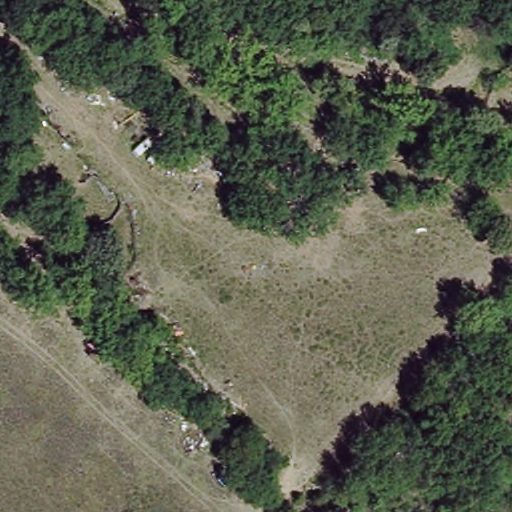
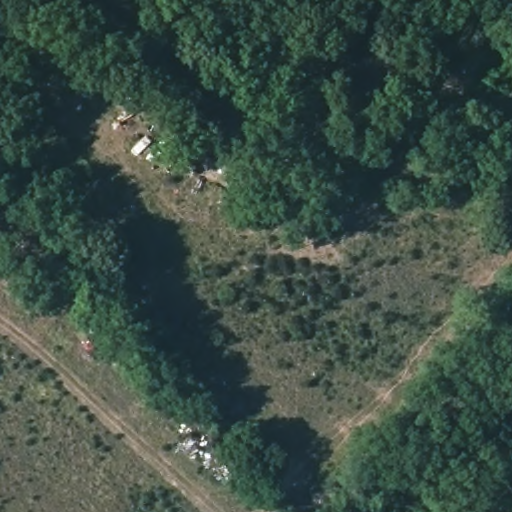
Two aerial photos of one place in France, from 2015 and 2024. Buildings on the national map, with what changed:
[]

